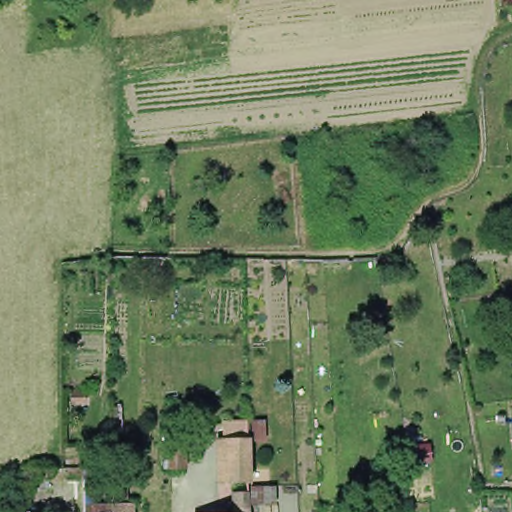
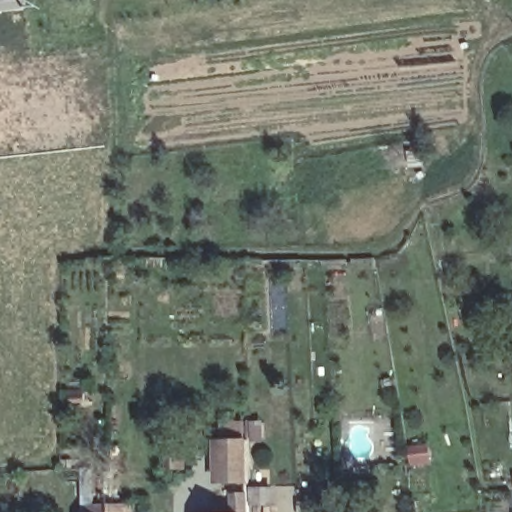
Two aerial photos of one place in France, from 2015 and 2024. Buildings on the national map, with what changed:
unchanged [(184,469),(169,469),(170,441),(184,441),(184,469)]
unchanged [(216,484),(215,442),(240,441),(240,484),(216,484)]
unchanged [(236,501),(249,500),(250,512),(236,512),(236,501)]
unchanged [(85,506),(113,506),(113,504),(139,505),(139,512),(86,512),(85,506)]

